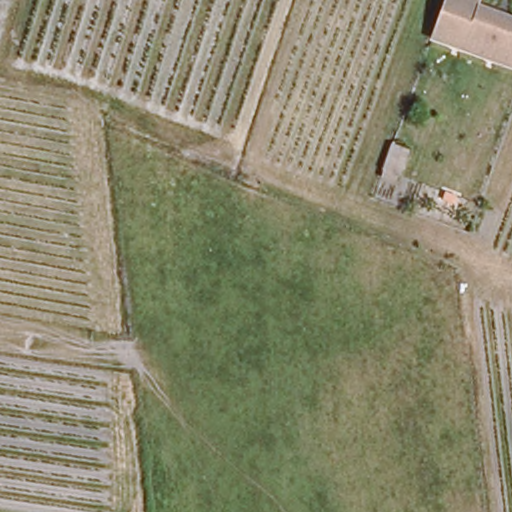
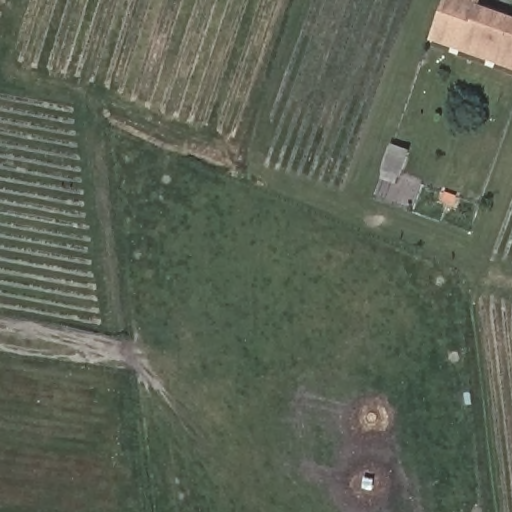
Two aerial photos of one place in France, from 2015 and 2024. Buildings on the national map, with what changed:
unchanged [(431,27),(441,0),(478,0),(477,5),(512,17),(512,67),(461,48),(428,36),(431,27)]
unchanged [(399,175),(383,170),(393,142),(409,149),(399,175)]

